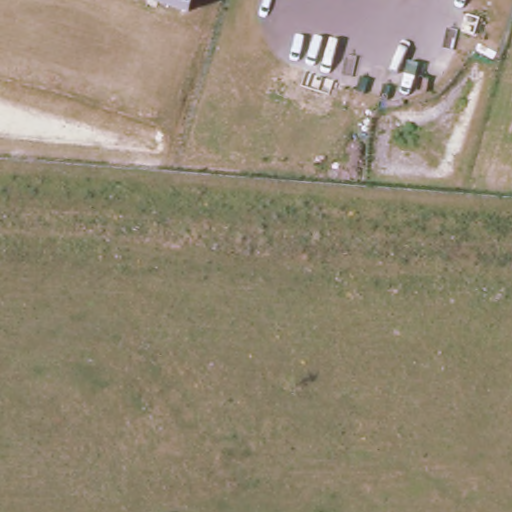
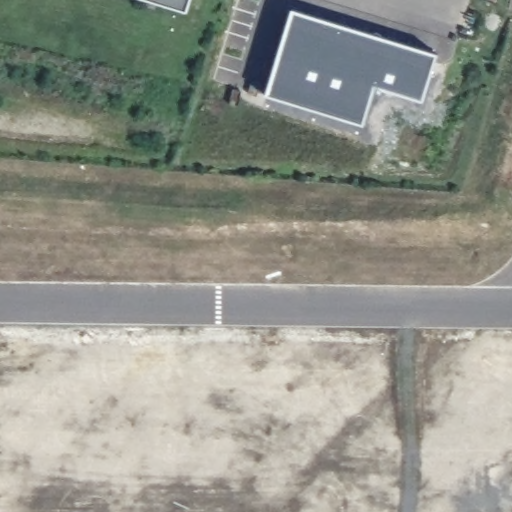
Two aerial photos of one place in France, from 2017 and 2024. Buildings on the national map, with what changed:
unchanged [(188,13),(145,0),(192,0),(188,13)]
new [(437,54),(423,101),(375,87),(364,125),(267,95),(292,11),(437,54)]

